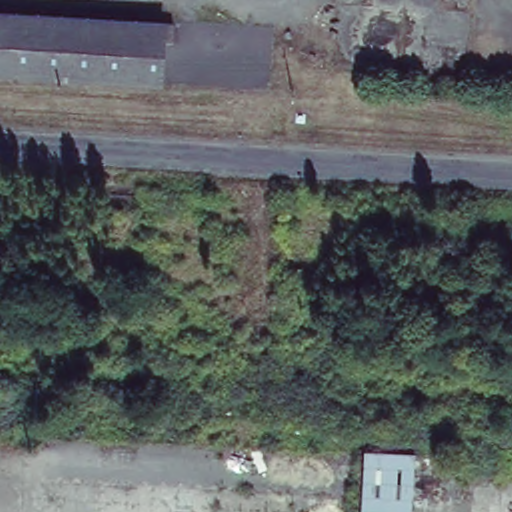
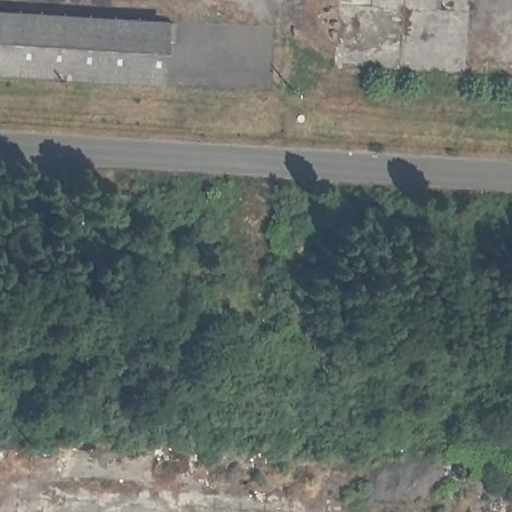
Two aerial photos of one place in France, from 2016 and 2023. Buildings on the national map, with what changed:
unchanged [(177,42),(166,41),(164,83),(0,74),(0,13),(178,23),(177,42)]
demolished [(414,512),(362,508),(365,457),(416,460),(414,512)]

